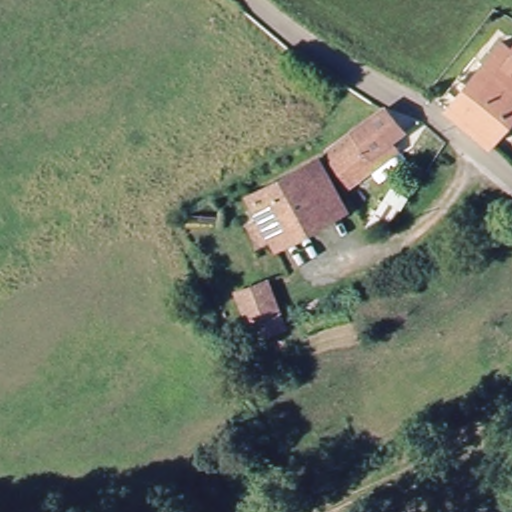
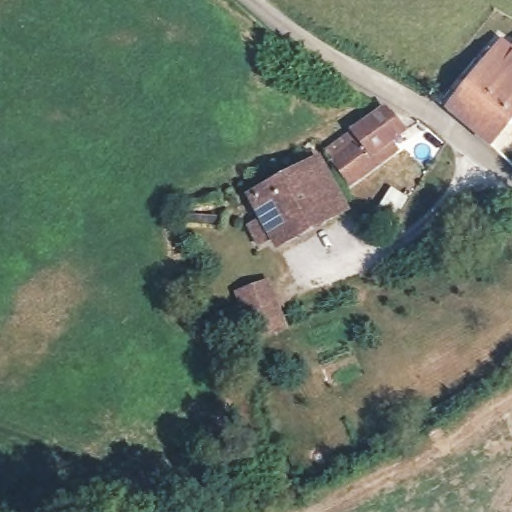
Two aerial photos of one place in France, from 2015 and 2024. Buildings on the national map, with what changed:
unchanged [(510,46),(512,44),(512,108),(485,140),(445,104),(501,40),(510,46)]
unchanged [(322,150),(353,129),(385,106),(399,128),(367,150),(372,158),(339,180),(328,161),(322,150)]
unchanged [(248,231),(263,224),(246,195),(314,155),(341,203),(275,245),(261,254),(248,231)]
unchanged [(237,296),(265,283),(277,310),(247,324),(237,296)]
unchanged [(447,420),(493,393),(510,423),(465,450),(447,420)]

